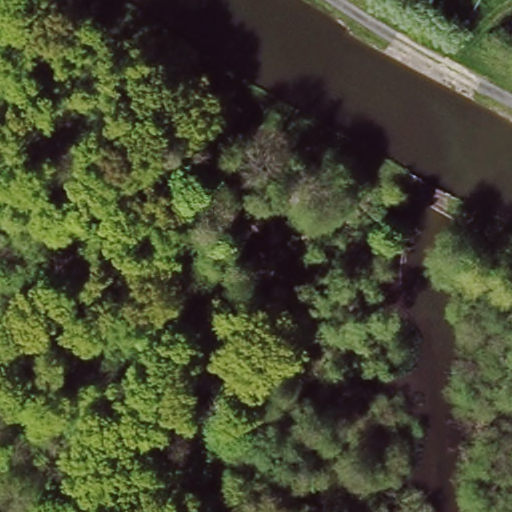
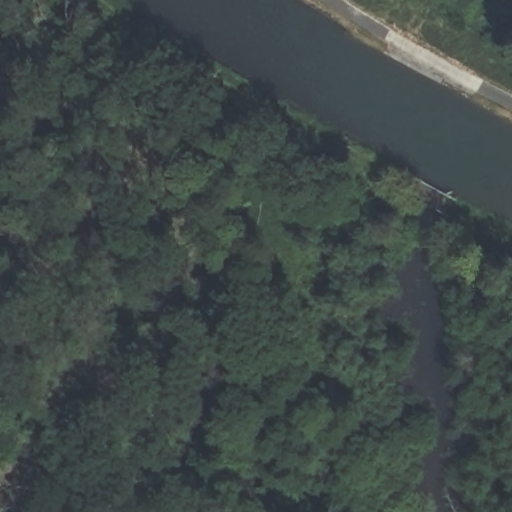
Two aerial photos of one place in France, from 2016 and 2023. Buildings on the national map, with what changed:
[]

